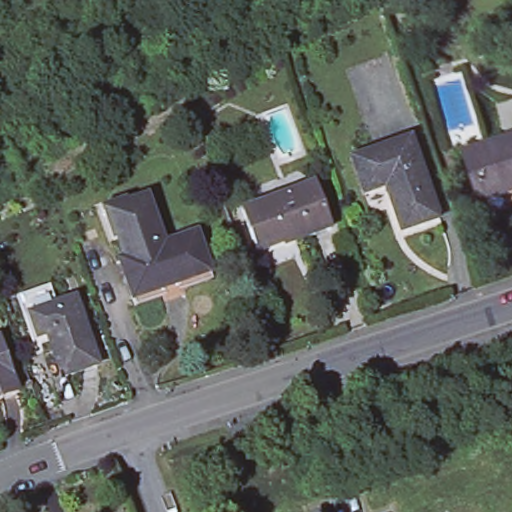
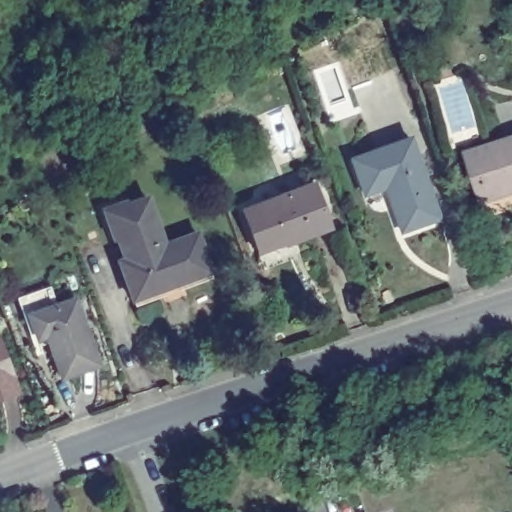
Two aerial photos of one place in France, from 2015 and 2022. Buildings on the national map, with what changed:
unchanged [(415,136),(445,216),(407,229),(391,185),(372,192),(359,157),(415,136)]
unchanged [(512,142),(512,189),(485,199),(471,157),(512,142)]
unchanged [(316,184),(332,230),(296,242),(295,239),(258,252),(251,229),(259,226),(252,206),(316,184)]
unchanged [(150,194),(167,242),(200,231),(216,275),(138,302),(122,257),(127,254),(117,224),(122,212),(132,207),(131,200),(150,194)]
unchanged [(57,345),(41,350),(24,302),(58,289),(65,307),(37,317),(45,340),(55,337),(57,345)]
unchanged [(45,340),(37,317),(65,307),(84,301),(105,367),(68,379),(57,345),(55,337),(45,340)]
unchanged [(0,394),(0,336),(17,388),(0,394)]

